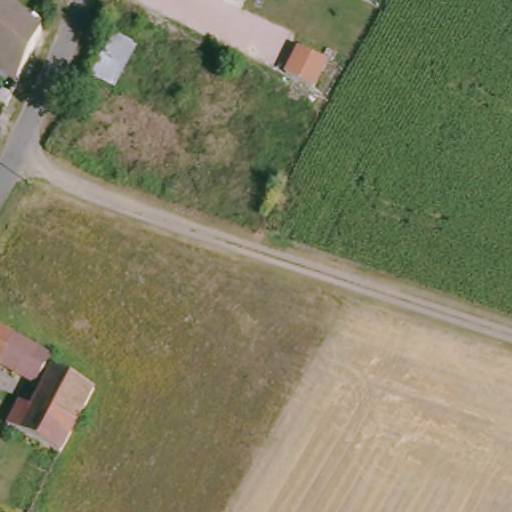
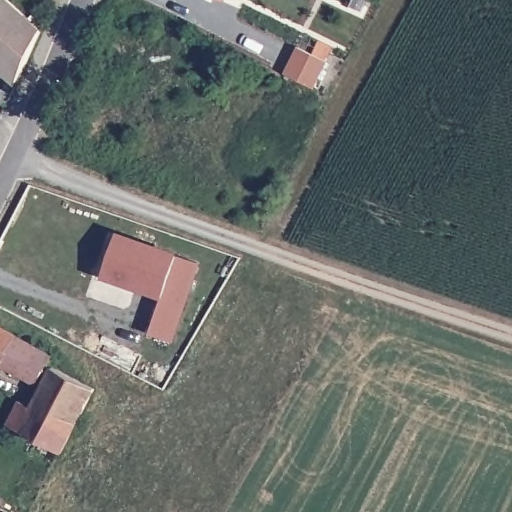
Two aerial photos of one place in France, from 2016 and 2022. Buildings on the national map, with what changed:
unchanged [(217,0),(223,0),(222,2),(217,0)]
unchanged [(8,83),(0,75),(0,1),(31,30),(8,83)]
unchanged [(139,45),(116,90),(90,77),(112,34),(139,45)]
new [(296,49),(324,62),(311,89),(284,77),(296,49)]
new [(118,234),(199,263),(171,342),(150,334),(163,297),(104,276),(118,234)]
unchanged [(1,332),(45,353),(33,384),(0,369),(0,331),(1,332)]
unchanged [(80,380),(46,448),(13,432),(26,406),(37,411),(46,391),(40,388),(48,369),(50,365),(80,380)]

